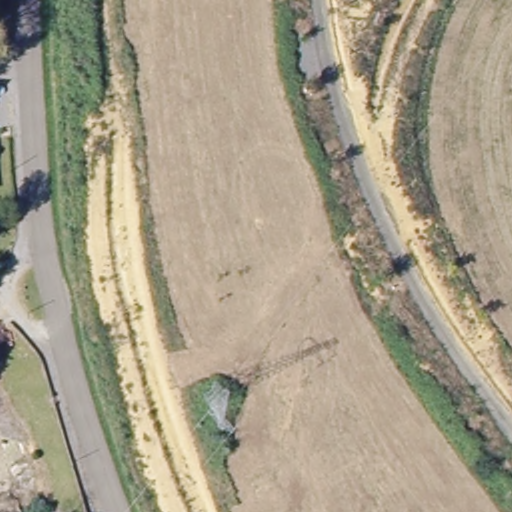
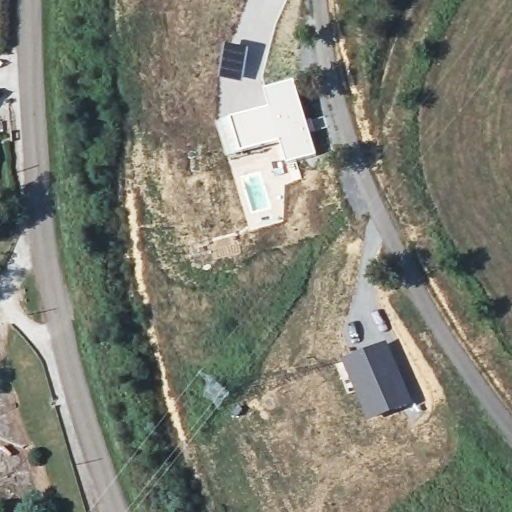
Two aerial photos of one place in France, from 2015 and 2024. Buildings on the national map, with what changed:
new [(268,107),(262,89),(294,79),(317,155),(286,164),(279,143),(241,153),(230,119),(268,107)]
new [(386,341),(412,402),(368,419),(339,360),(386,341)]

